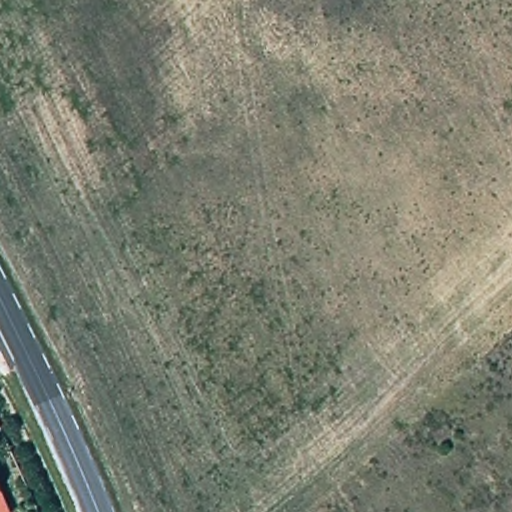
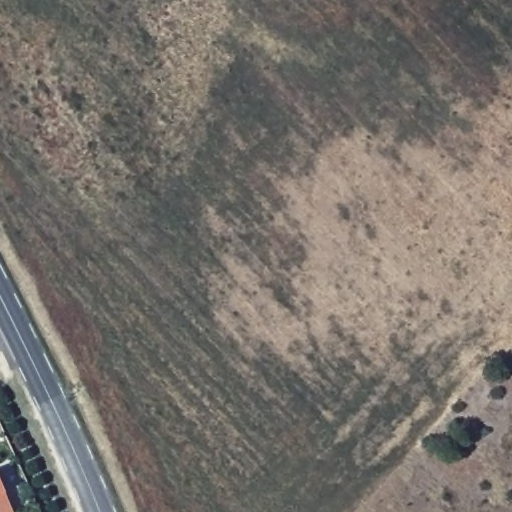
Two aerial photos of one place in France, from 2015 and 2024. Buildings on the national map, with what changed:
unchanged [(0,512),(0,477),(13,512),(0,512)]

